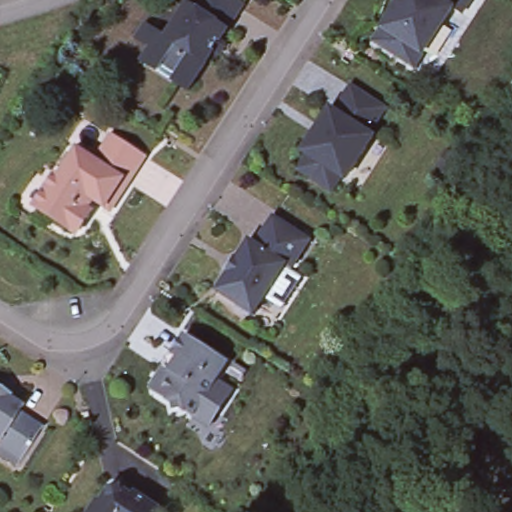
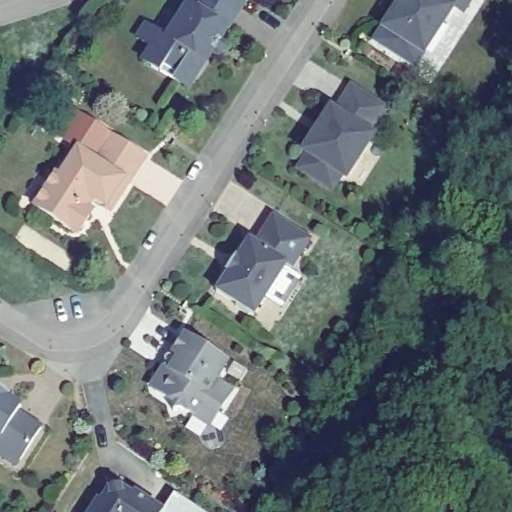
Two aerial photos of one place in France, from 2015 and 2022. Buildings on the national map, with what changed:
unchanged [(242,0),(244,1),(189,85),(145,60),(187,0),(242,0)]
unchanged [(397,0),(474,0),(465,15),(457,6),(426,56),(417,71),(374,41),(379,29),(397,0)]
unchanged [(296,169),(303,155),(294,152),(316,100),(332,110),(349,85),(391,111),(335,192),(296,169)]
unchanged [(55,169),(59,170),(77,145),(92,155),(110,132),(145,157),(129,180),(110,211),(95,201),(90,210),(95,212),(80,238),(31,206),(55,169)]
unchanged [(240,239),(249,245),(270,212),(310,239),(255,316),(214,288),(240,239)]
unchanged [(182,335),(230,362),(217,378),(238,389),(211,426),(153,390),(182,335)]
unchanged [(25,405),(19,413),(46,428),(22,466),(0,456),(0,388),(25,405)]
unchanged [(109,478),(165,509),(163,512),(87,512),(109,478)]

